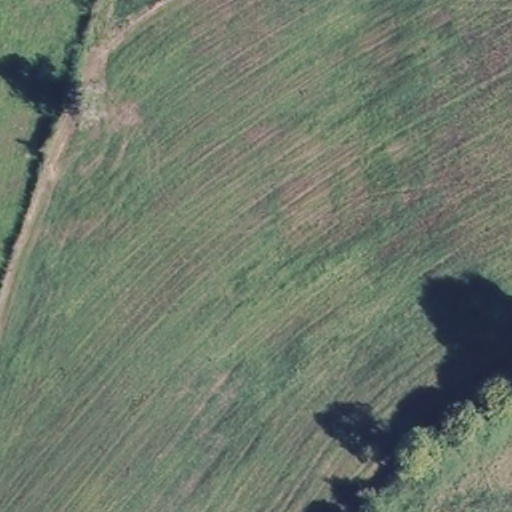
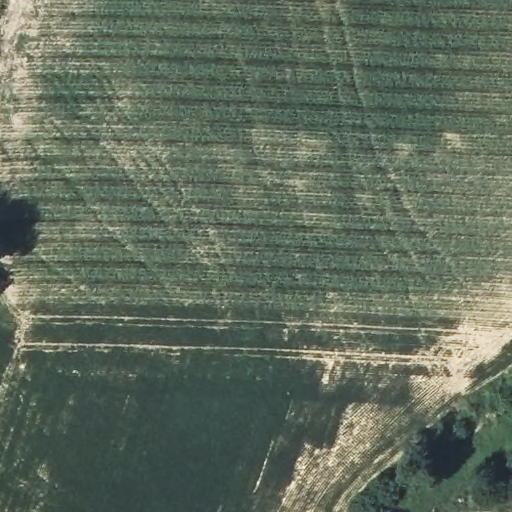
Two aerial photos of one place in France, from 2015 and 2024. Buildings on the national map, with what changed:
[]

